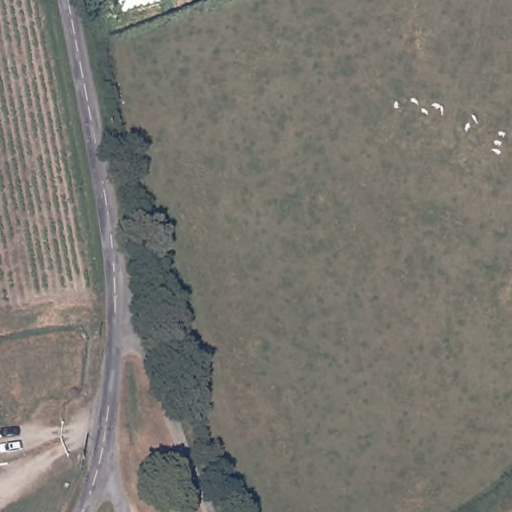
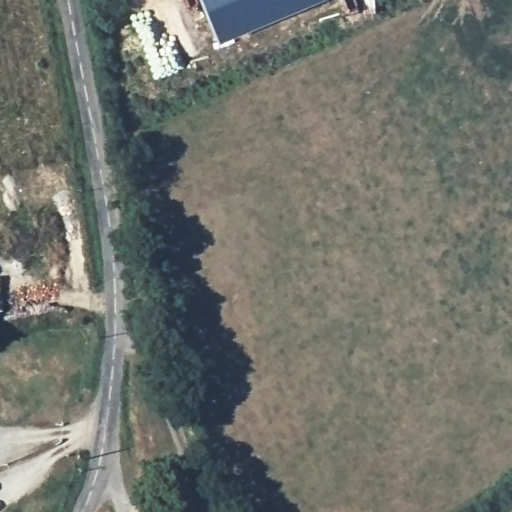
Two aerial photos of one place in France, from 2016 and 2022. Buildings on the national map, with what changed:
new [(214,38),(197,0),(308,0),(214,38)]

